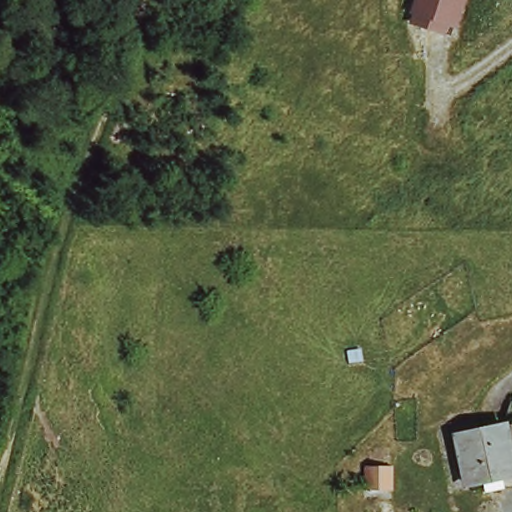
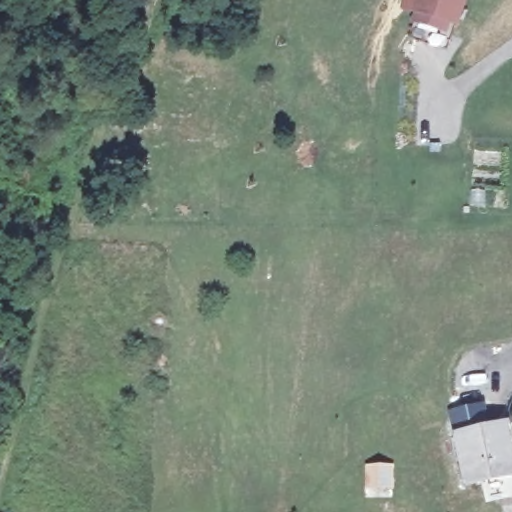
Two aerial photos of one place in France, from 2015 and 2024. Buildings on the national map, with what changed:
unchanged [(413,20),(417,8),(413,7),(416,0),(455,0),(448,20),(444,20),(440,32),(413,20)]
unchanged [(499,430),(509,476),(464,485),(454,436),(499,430)]
unchanged [(394,471),(394,491),(371,491),(371,470),(394,471)]

